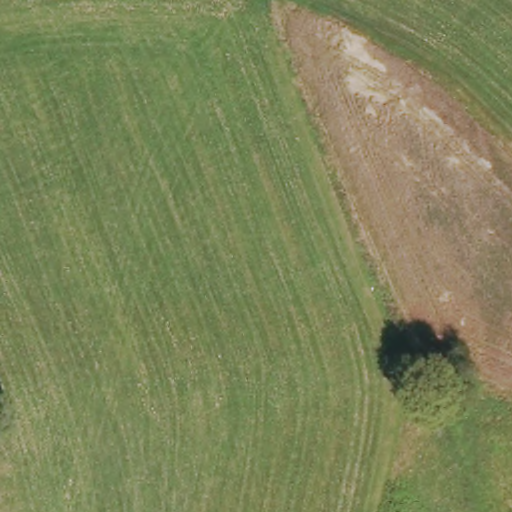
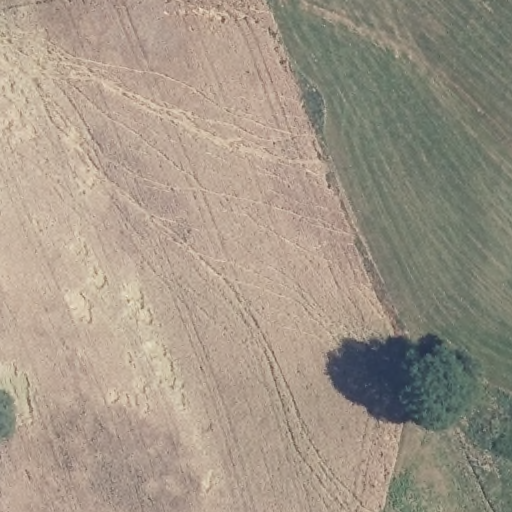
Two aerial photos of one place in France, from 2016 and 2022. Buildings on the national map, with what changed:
[]

